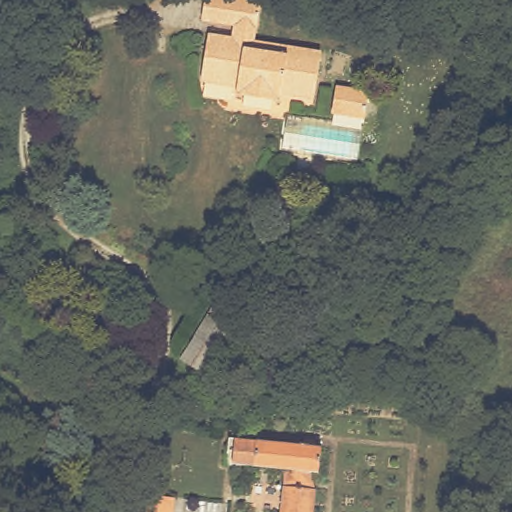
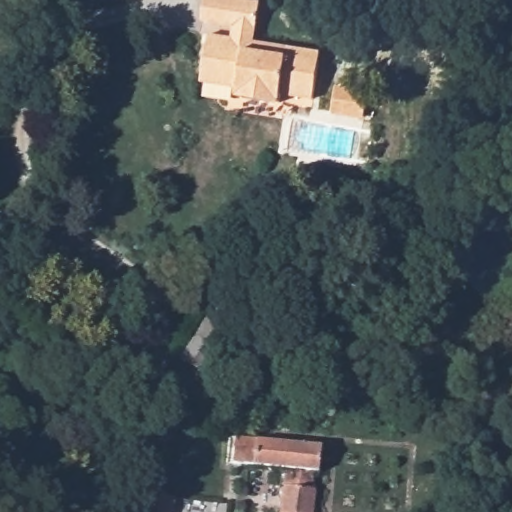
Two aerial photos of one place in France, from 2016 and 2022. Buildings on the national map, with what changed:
unchanged [(278,100),(233,92),(234,83),(200,77),(209,31),(238,35),(240,22),(201,16),(204,0),(262,0),(256,38),(321,49),(313,96),(279,90),(278,100)]
unchanged [(372,82),(362,155),(284,142),(289,109),(334,114),(338,78),(372,82)]
unchanged [(208,366),(186,351),(212,310),(234,326),(208,366)]
unchanged [(286,467),(232,462),(235,437),(302,443),(303,437),(314,438),(313,445),(320,445),(318,471),(312,471),(311,476),(316,476),(315,485),(318,485),(315,512),(282,512),(286,467)]

